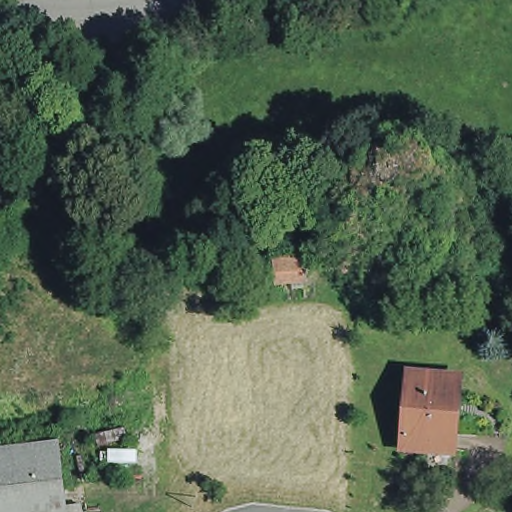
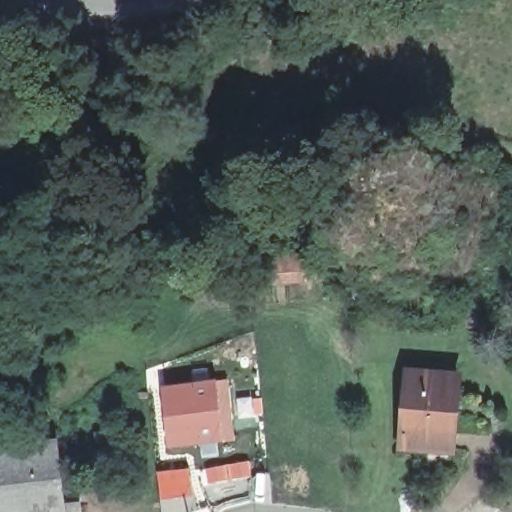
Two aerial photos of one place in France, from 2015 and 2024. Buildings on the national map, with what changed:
unchanged [(457,374),(451,449),(400,446),(407,370),(457,374)]
new [(234,440),(170,449),(164,389),(227,381),(234,440)]
unchanged [(65,498),(80,497),(81,512),(0,512),(0,441),(59,435),(65,498)]

